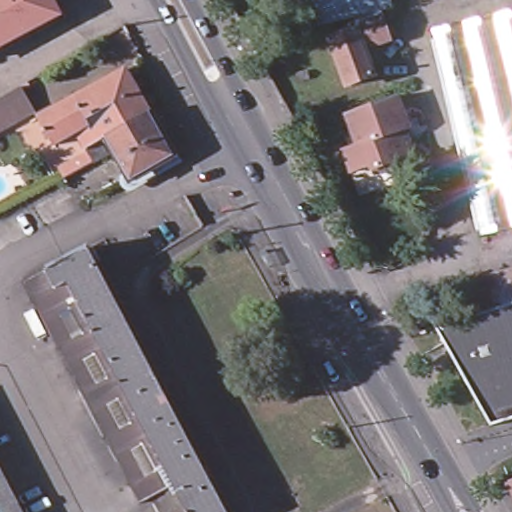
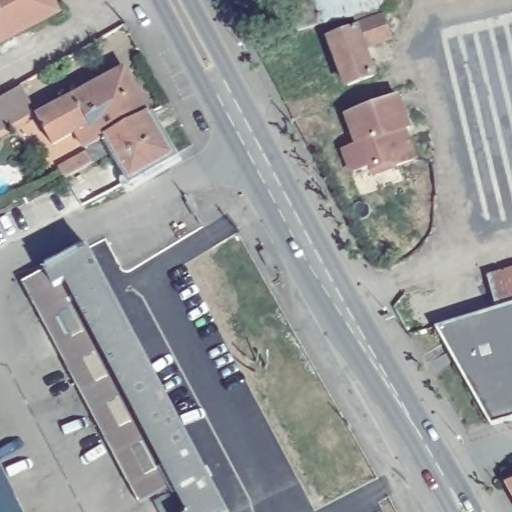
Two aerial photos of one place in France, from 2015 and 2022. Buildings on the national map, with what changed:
unchanged [(10,39),(0,21),(0,0),(51,0),(58,14),(10,39)]
unchanged [(362,50),(370,77),(343,88),(325,38),(320,26),(295,32),(282,7),(295,0),(388,0),(390,8),(380,11),(391,39),(362,50)]
unchanged [(433,29),(512,11),(512,229),(482,235),(433,29)]
unchanged [(10,39),(0,44),(0,21),(10,39)]
unchanged [(83,149),(72,130),(48,143),(35,118),(122,70),(147,113),(153,124),(170,155),(127,180),(110,149),(104,140),(103,138),(97,141),(105,155),(90,160),(62,176),(56,166),(85,150),(83,149)]
unchanged [(15,86),(30,111),(0,128),(0,95),(15,86)]
unchanged [(367,164),(363,166),(348,171),(341,152),(353,147),(343,116),(395,97),(406,129),(402,130),(412,159),(392,166),(371,174),(370,170),(367,164)]
unchanged [(65,285),(52,291),(43,275),(85,251),(95,271),(94,271),(158,387),(129,403),(65,285)]
unchanged [(482,277),(512,268),(512,303),(490,310),(482,277)]
unchanged [(20,287),(43,275),(52,291),(65,285),(129,403),(95,422),(20,287)]
unchanged [(432,330),(467,317),(490,310),(512,303),(512,423),(495,428),(432,330)]
unchanged [(177,491),(175,486),(129,403),(158,387),(215,493),(220,503),(222,501),(227,512),(160,512),(157,504),(177,491)]
unchanged [(140,505),(95,422),(129,403),(175,486),(140,505)]
unchanged [(23,512),(0,512),(0,469),(23,512)]
unchanged [(512,483),(512,497),(505,485),(512,483)]

